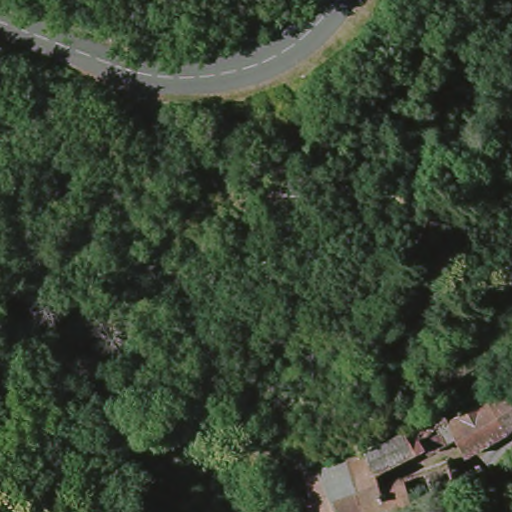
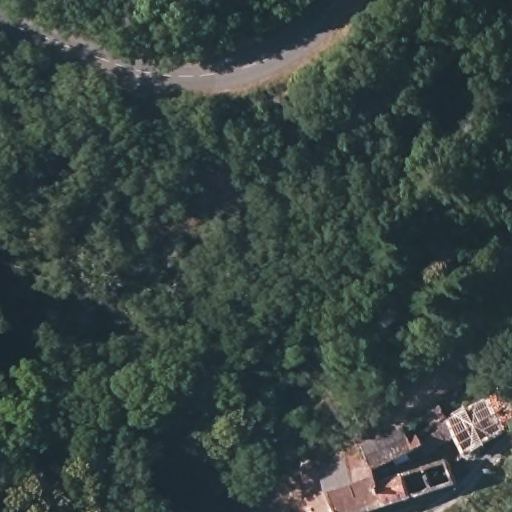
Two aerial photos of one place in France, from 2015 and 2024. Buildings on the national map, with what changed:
unchanged [(301,480),(358,459),(360,445),(410,424),(447,415),(506,380),(512,387),(512,426),(505,432),(467,452),(418,450),(384,472),(396,501),(358,512),(312,512),(301,480)]

